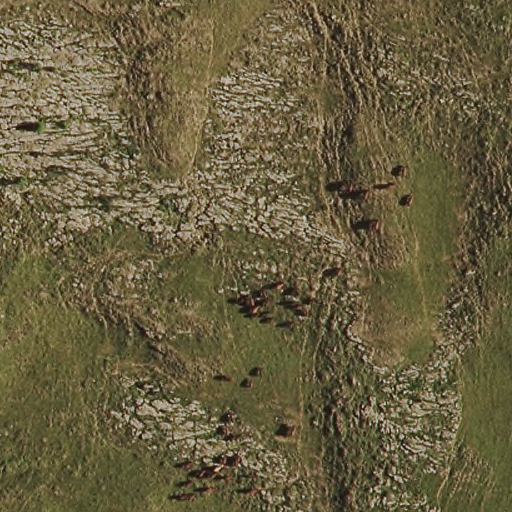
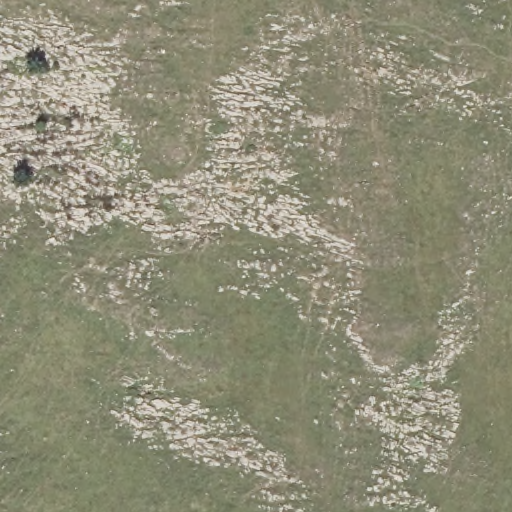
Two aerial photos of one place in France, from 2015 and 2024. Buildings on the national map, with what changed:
[]

